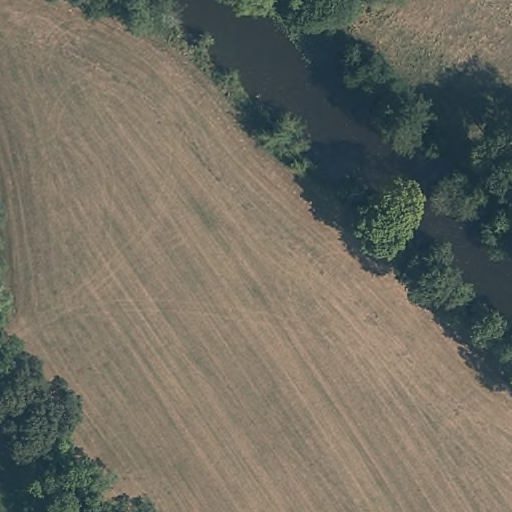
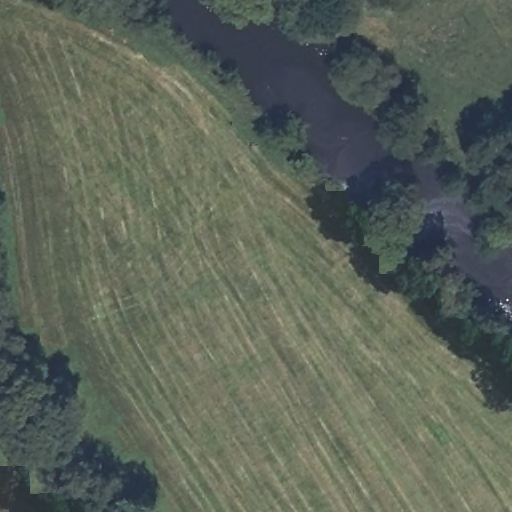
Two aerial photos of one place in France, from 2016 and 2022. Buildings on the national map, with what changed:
[]

